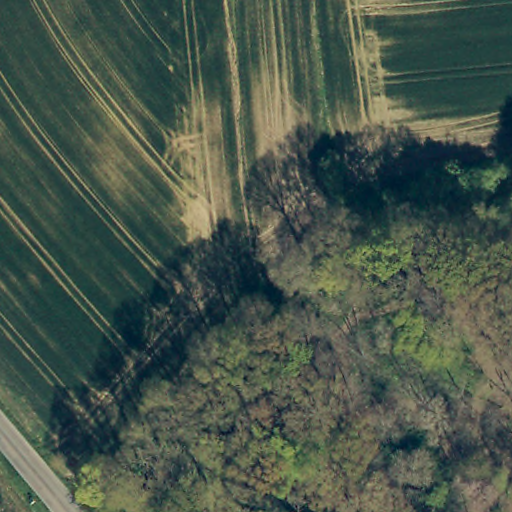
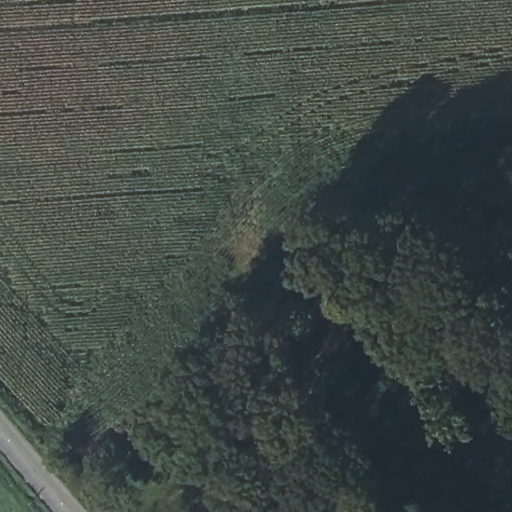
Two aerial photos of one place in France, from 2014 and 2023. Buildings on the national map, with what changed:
[]

